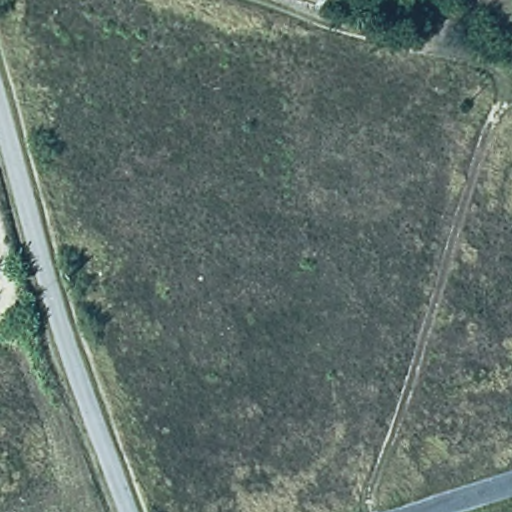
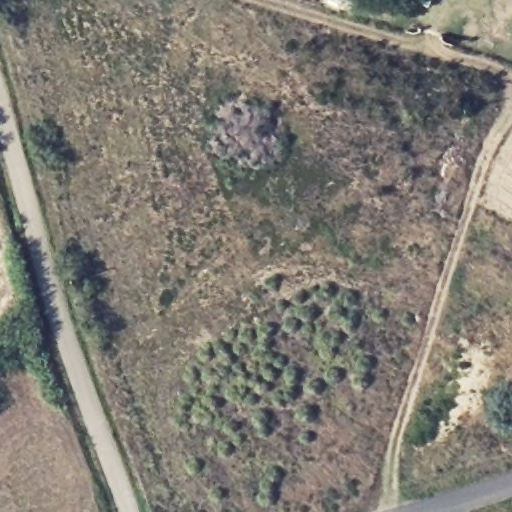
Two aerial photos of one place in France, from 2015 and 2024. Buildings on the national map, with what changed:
[]

